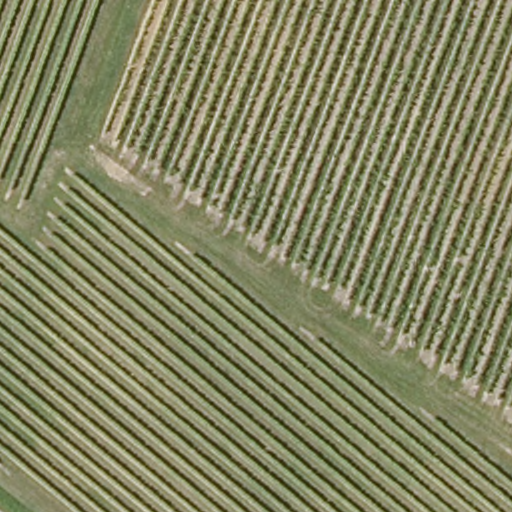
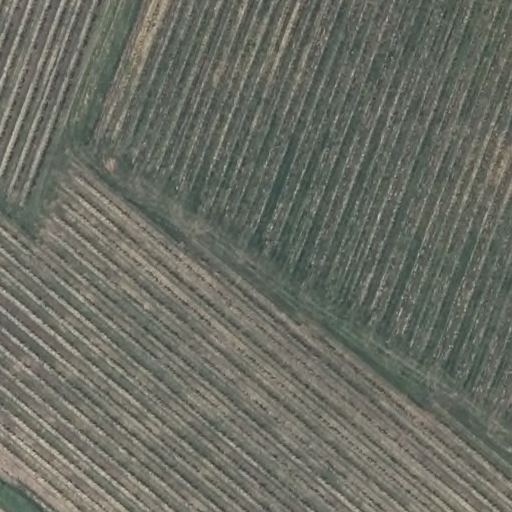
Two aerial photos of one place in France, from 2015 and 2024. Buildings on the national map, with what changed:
[]

